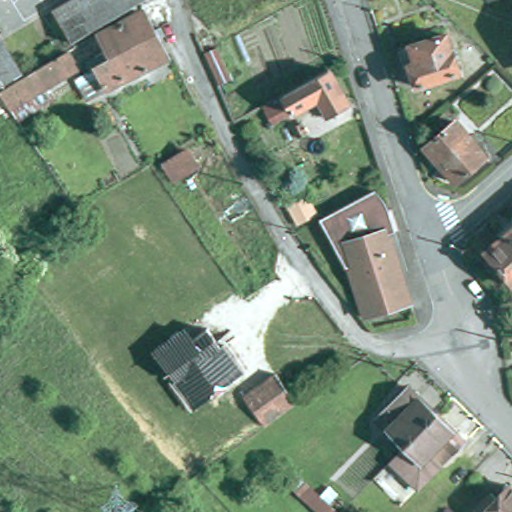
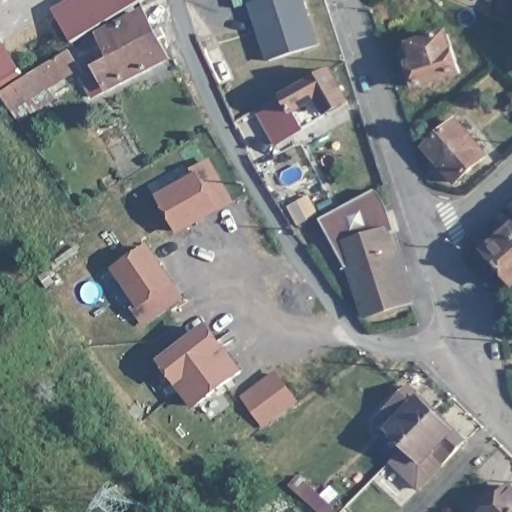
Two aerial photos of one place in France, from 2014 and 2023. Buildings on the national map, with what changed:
unchanged [(56,10),(72,0),(143,0),(73,42),(56,10)]
new [(260,0),(306,0),(321,45),(268,62),(249,4),(260,0)]
unchanged [(143,12),(164,55),(88,97),(80,81),(99,70),(97,66),(96,61),(98,57),(98,56),(109,49),(102,33),(143,12)]
unchanged [(422,82),(409,44),(452,31),(464,68),(422,82)]
unchanged [(219,86),(199,42),(213,36),(233,79),(219,86)]
unchanged [(22,73),(0,86),(0,38),(22,73)]
unchanged [(1,92),(68,50),(78,67),(11,108),(1,92)]
unchanged [(331,114),(323,99),(296,114),(285,96),(332,70),(351,103),(331,114)]
new [(256,112),(285,96),(296,114),(306,130),(276,147),(256,112)]
unchanged [(427,147),(457,122),(488,157),(458,182),(427,147)]
demolished [(188,151),(198,167),(176,181),(166,165),(188,151)]
new [(211,159),(235,205),(221,211),(178,235),(158,195),(192,176),(189,169),(211,159)]
unchanged [(406,305),(367,317),(351,266),(348,268),(323,221),(377,192),(389,207),(398,232),(391,235),(408,287),(414,302),(411,303),(406,305)]
unchanged [(512,219),(512,232),(506,224),(512,219)]
unchanged [(480,246),(506,224),(512,232),(512,281),(511,282),(480,246)]
new [(185,298),(143,326),(131,306),(135,303),(113,268),(151,244),(176,283),(185,298)]
unchanged [(213,323),(245,367),(201,400),(169,355),(213,323)]
unchanged [(251,401),(244,392),(277,368),(299,400),(266,423),(261,417),(251,401)]
unchanged [(405,442),(378,416),(409,382),(438,409),(405,442)]
unchanged [(405,442),(438,409),(466,437),(419,483),(392,457),(405,442)]
unchanged [(299,477),(321,497),(330,487),(338,495),(330,507),(336,512),(318,512),(291,486),(299,477)]
unchanged [(503,496),(512,487),(512,512),(477,512),(497,492),(503,496)]

